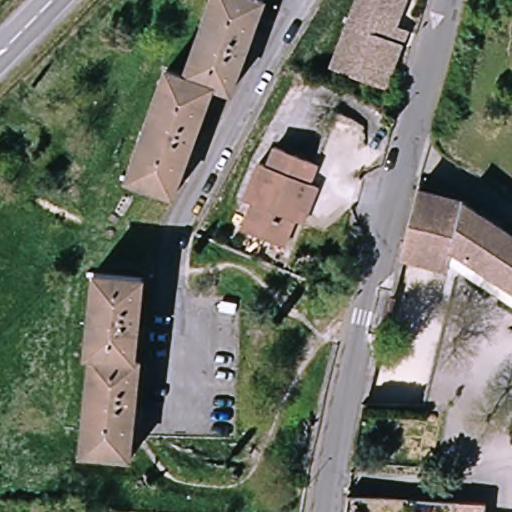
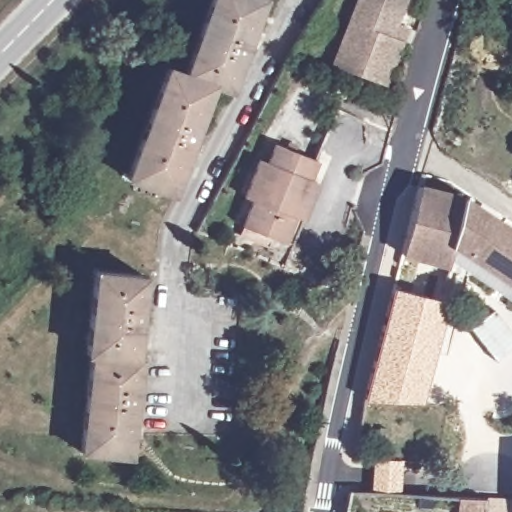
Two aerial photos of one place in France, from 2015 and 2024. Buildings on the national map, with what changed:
unchanged [(122,181),(164,70),(181,76),(210,0),(263,0),(233,81),(228,94),(219,91),(211,87),(205,103),(199,116),(168,199),(122,181)]
unchanged [(384,85),(332,63),(358,0),(406,0),(397,23),(408,28),(402,42),(384,85)]
unchanged [(292,224),(281,249),(241,231),(253,206),(245,203),(262,165),(270,168),(279,148),(318,167),(310,185),(318,189),(305,216),(300,228),(292,224)]
unchanged [(500,278),(455,246),(450,266),(403,254),(420,186),(460,201),(460,203),(512,235),(512,287),(500,278)]
unchanged [(134,355),(138,355),(137,369),(130,456),(82,452),(89,351),(85,351),(89,283),(131,286),(138,286),(137,301),(134,337),(134,355)]
new [(364,401),(392,288),(449,301),(424,404),(364,401)]
unchanged [(465,499),(491,501),(490,512),(464,512),(465,499)]

